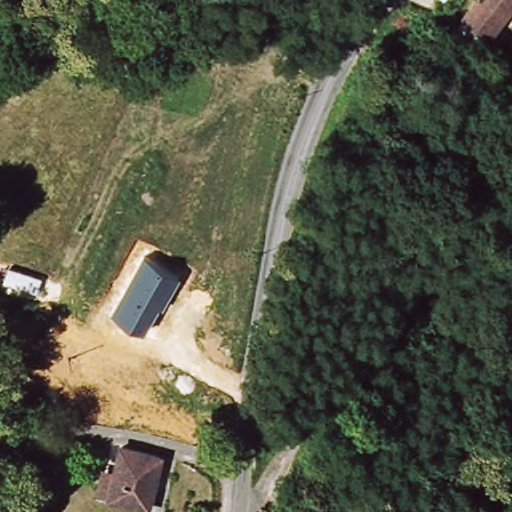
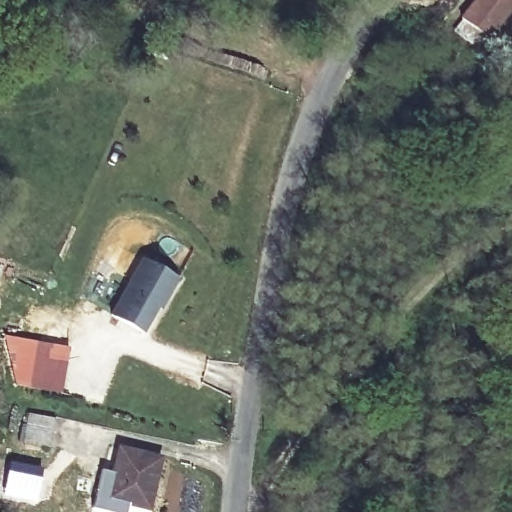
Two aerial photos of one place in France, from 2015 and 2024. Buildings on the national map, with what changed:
unchanged [(490,34),(467,18),(480,0),(512,0),(512,3),(490,34)]
unchanged [(177,278),(144,333),(110,314),(141,256),(177,278)]
new [(68,346),(60,392),(12,384),(3,335),(68,346)]
unchanged [(20,437),(27,408),(49,413),(42,442),(20,437)]
unchanged [(124,453),(161,459),(153,507),(115,500),(124,453)]
new [(8,460),(35,471),(40,473),(36,503),(0,496),(8,460)]

